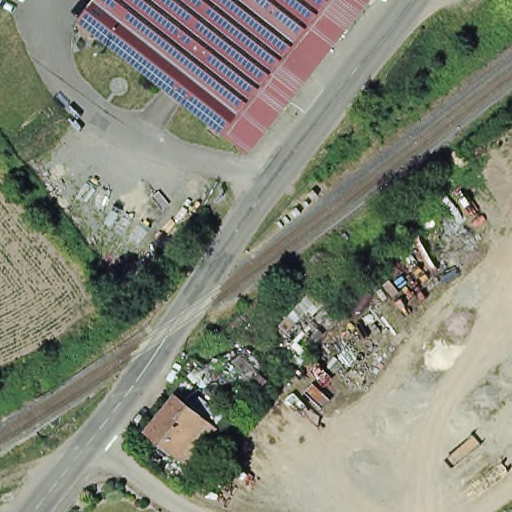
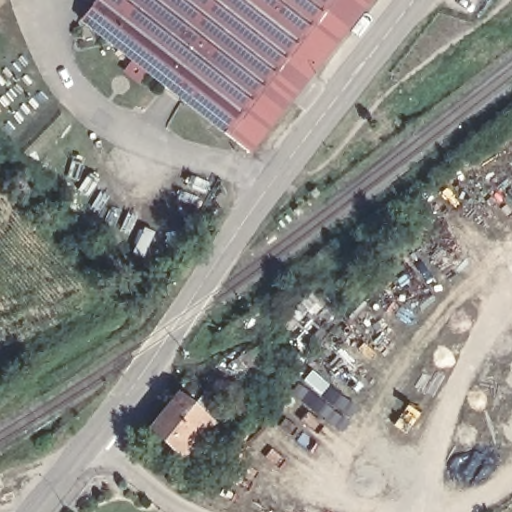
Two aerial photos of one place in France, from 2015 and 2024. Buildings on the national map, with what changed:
unchanged [(83,25),(103,0),(374,0),(255,155),(83,25)]
unchanged [(143,422),(169,392),(180,402),(190,392),(229,424),(219,437),(194,465),(181,453),(172,446),(164,456),(150,446),(159,435),(143,422)]

